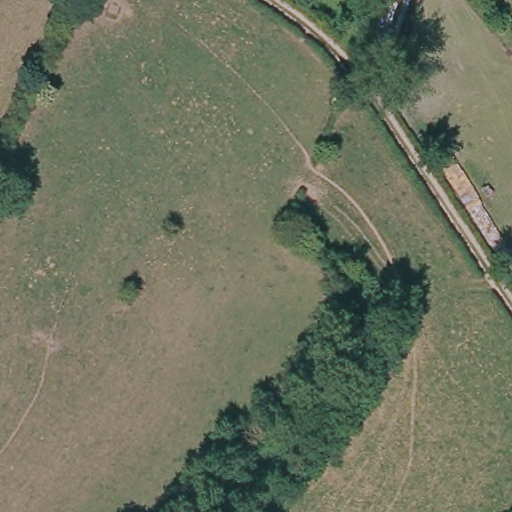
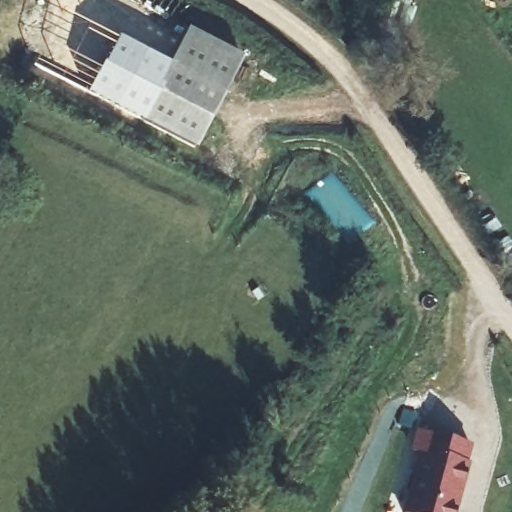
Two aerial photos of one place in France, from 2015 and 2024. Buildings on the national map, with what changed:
unchanged [(377,22),(385,0),(412,0),(402,29),(392,55),(369,45),(377,22)]
new [(34,66),(61,11),(117,38),(116,39),(86,93),(34,66)]
new [(242,59),(196,149),(86,93),(116,39),(117,38),(168,64),(187,29),(242,59)]
new [(465,462),(467,462),(453,512),(405,512),(421,452),(412,450),(418,430),(470,444),(465,462)]

